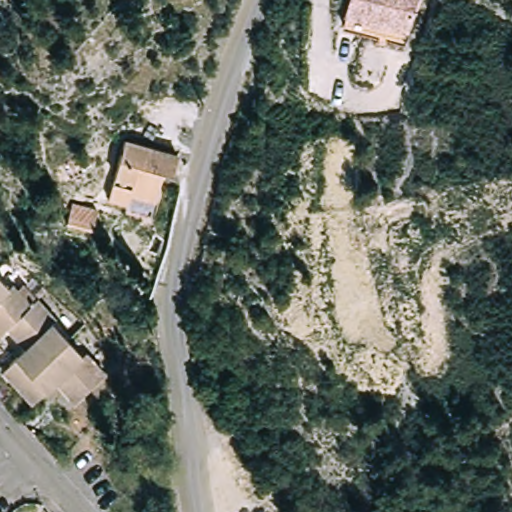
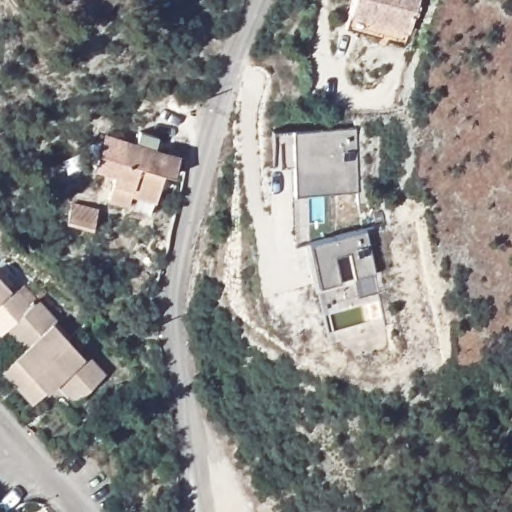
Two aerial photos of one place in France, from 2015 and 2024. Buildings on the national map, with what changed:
unchanged [(405,42),(345,19),(352,0),(421,0),(405,42)]
new [(291,131),(356,129),(357,192),(293,193),(292,165),(274,165),(273,131),(291,131)]
unchanged [(150,216),(126,210),(127,205),(106,200),(125,141),(178,157),(173,176),(163,174),(150,216)]
unchanged [(91,230),(65,223),(70,202),(96,209),(91,230)]
new [(365,230),(373,271),(376,292),(357,297),(354,276),(315,285),(307,241),(365,230)]
unchanged [(11,324),(5,330),(0,325),(0,270),(18,289),(21,286),(35,301),(26,310),(11,324)]
unchanged [(55,311),(52,314),(72,336),(23,382),(6,364),(29,344),(11,324),(26,310),(35,301),(41,295),(55,311)]
unchanged [(110,371),(78,399),(60,378),(38,398),(23,382),(72,336),(92,357),(95,355),(110,371)]

